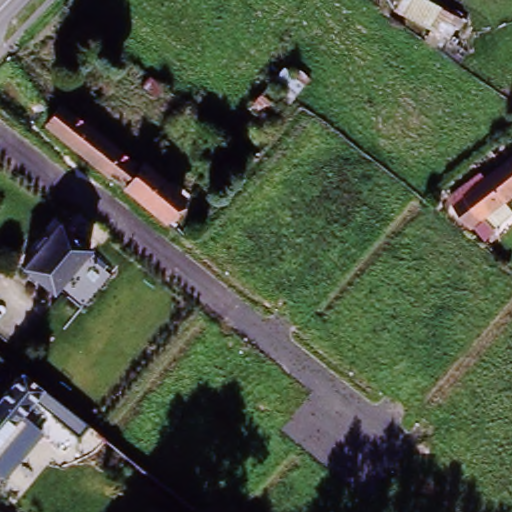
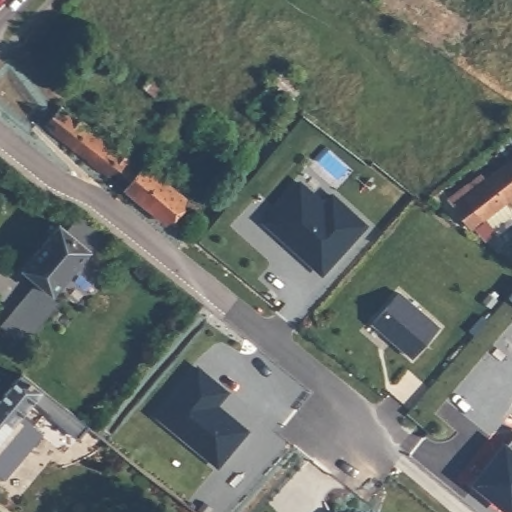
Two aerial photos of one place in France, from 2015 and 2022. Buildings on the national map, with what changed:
unchanged [(460,21),(448,45),(439,53),(423,43),(430,32),(394,14),(397,7),(387,0),(421,0),(460,21)]
unchanged [(293,78),(299,71),(310,79),(268,132),(263,125),(249,111),(284,69),(293,78)]
unchanged [(61,107),(144,164),(189,201),(164,226),(124,191),(42,129),(25,112),(7,90),(29,74),(57,111),(61,107)]
unchanged [(484,179),(512,157),(512,199),(505,204),(512,214),(493,232),(485,222),(470,234),(447,201),(480,174),(484,179)]
new [(300,183),(324,205),(332,196),(366,226),(322,274),(290,245),(293,242),(282,232),(279,235),(265,222),(300,183)]
unchanged [(92,252),(52,297),(22,268),(57,224),(92,252)]
new [(35,281),(52,297),(60,304),(23,347),(1,328),(35,281)]
new [(400,293),(439,328),(412,358),(373,323),(400,293)]
new [(217,383),(227,392),(216,405),(247,431),(219,466),(159,416),(199,368),(217,383)]
unchanged [(40,390),(65,409),(54,422),(32,404),(19,419),(42,435),(4,482),(0,478),(0,397),(20,374),(40,390)]
new [(505,512),(475,489),(504,454),(512,444),(512,512),(505,512)]

